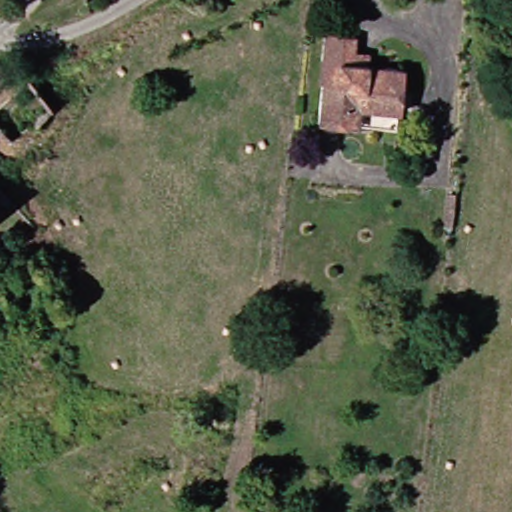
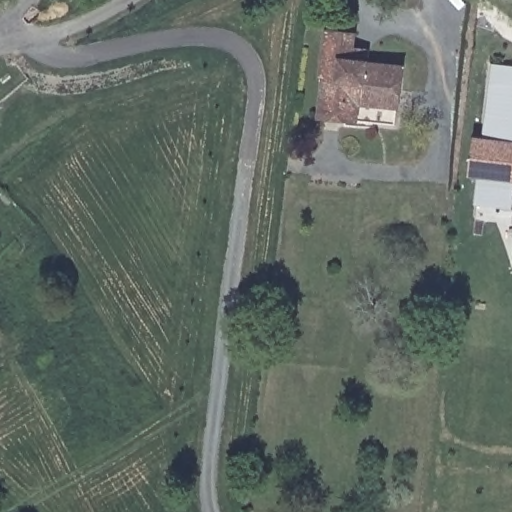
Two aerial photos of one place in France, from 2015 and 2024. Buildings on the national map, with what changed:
unchanged [(319,115),(328,57),(322,57),(326,34),(357,38),(357,46),(377,48),(375,64),(406,67),(399,110),(395,110),(393,126),(355,120),(345,119),(319,115)]
new [(477,203),(481,177),(470,177),(475,137),(485,137),(493,64),(512,66),(512,207),(477,203)]

